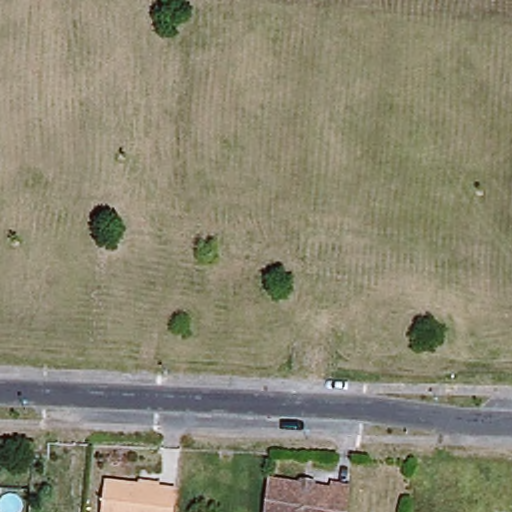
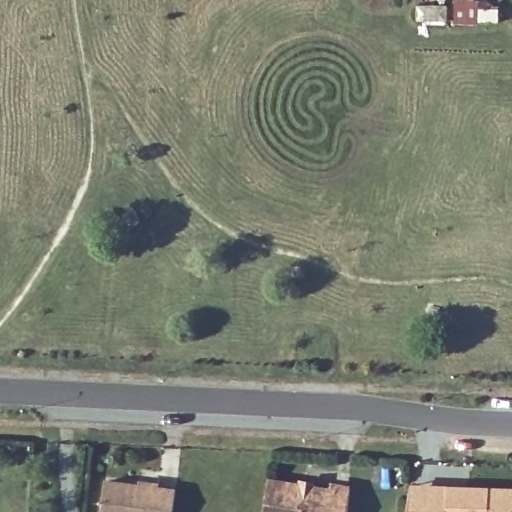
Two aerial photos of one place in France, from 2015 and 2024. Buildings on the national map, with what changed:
unchanged [(180,490),(177,512),(104,512),(109,481),(180,490)]
unchanged [(305,481),(316,482),(316,489),(332,491),(333,485),(351,487),(348,512),(268,512),(271,484),(304,488),(305,481)]
new [(512,488),(512,512),(408,512),(412,484),(512,488)]

